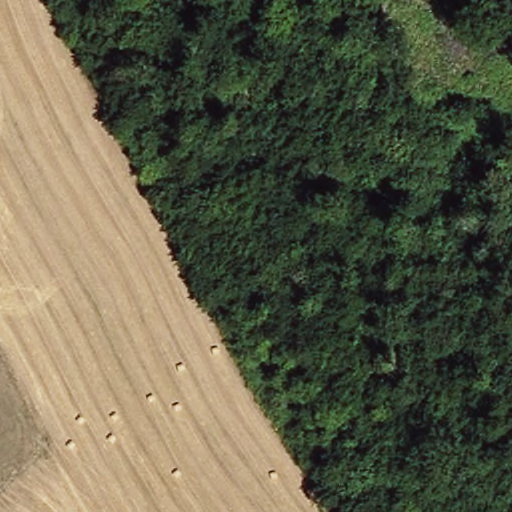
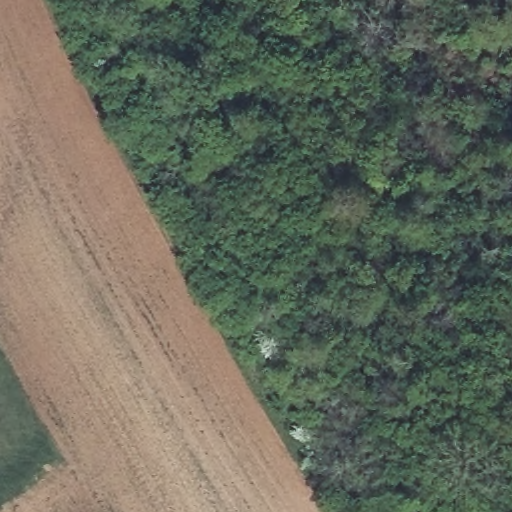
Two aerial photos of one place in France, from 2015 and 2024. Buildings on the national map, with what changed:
unchanged [(252,78),(275,69),(287,97),(264,106),(252,78)]

